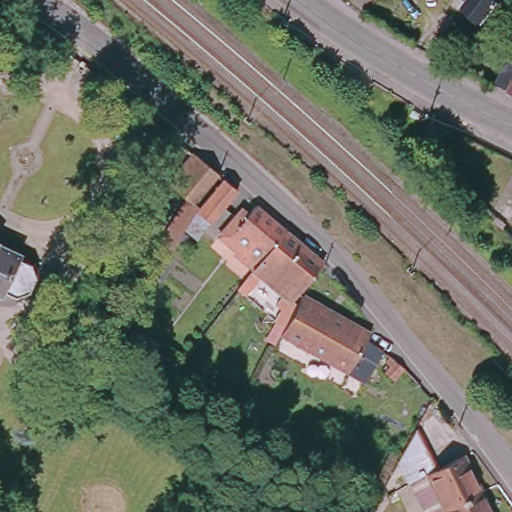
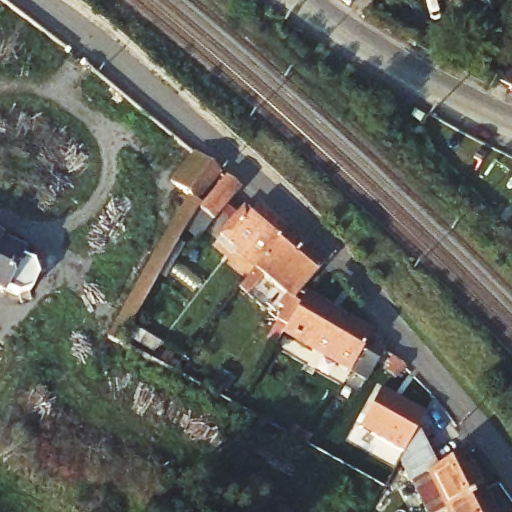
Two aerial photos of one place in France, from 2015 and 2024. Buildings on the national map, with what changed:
unchanged [(467,0),(466,0),(500,0),(488,17),(467,0)]
unchanged [(512,59),(512,93),(504,89),(492,81),(504,55),(512,59)]
unchanged [(168,184),(188,156),(218,178),(198,206),(186,199),(168,184)]
unchanged [(224,183),(226,181),(240,193),(198,245),(184,233),(201,210),(224,183)]
unchanged [(129,305),(126,303),(186,199),(198,206),(201,210),(184,233),(139,310),(117,348),(106,343),(129,305)]
unchanged [(253,264),(216,234),(236,210),(243,215),(253,203),(284,229),(253,264)]
unchanged [(294,290),(275,277),(279,273),(275,271),(271,275),(264,267),(243,294),(236,287),(253,264),(284,229),(319,258),(321,260),(294,290)]
unchanged [(33,253),(31,256),(55,268),(45,290),(43,292),(38,300),(16,288),(14,292),(3,286),(0,293),(0,238),(33,253)]
unchanged [(331,310),(309,349),(278,332),(283,325),(272,318),(286,295),(290,298),(292,294),(300,298),(301,294),(325,307),(331,310)]
unchanged [(331,310),(368,330),(363,339),(379,346),(369,365),(362,379),(343,367),(309,349),(331,310)]
unchanged [(391,377),(381,369),(388,363),(383,358),(389,351),(393,357),(402,365),(391,377)]
new [(425,412),(418,425),(406,447),(403,452),(358,428),(380,387),(425,412)]
unchanged [(448,506),(437,512),(428,512),(405,467),(400,457),(406,447),(418,425),(433,452),(440,466),(463,453),(483,489),(448,506)]
unchanged [(494,512),(451,512),(448,506),(483,489),(494,512)]

